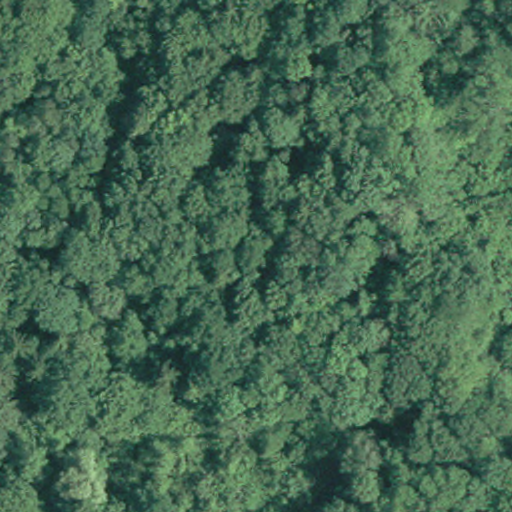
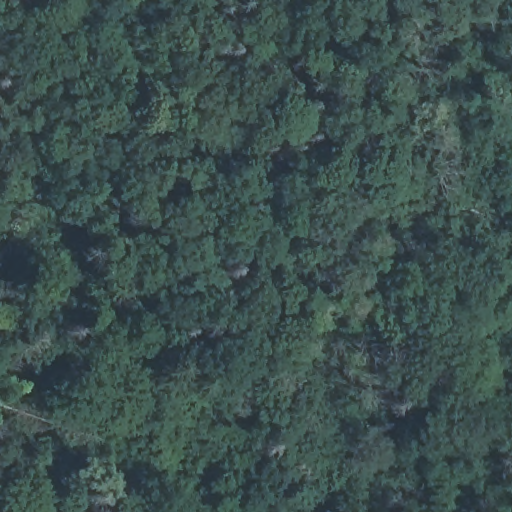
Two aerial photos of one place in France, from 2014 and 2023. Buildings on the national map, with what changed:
[]

